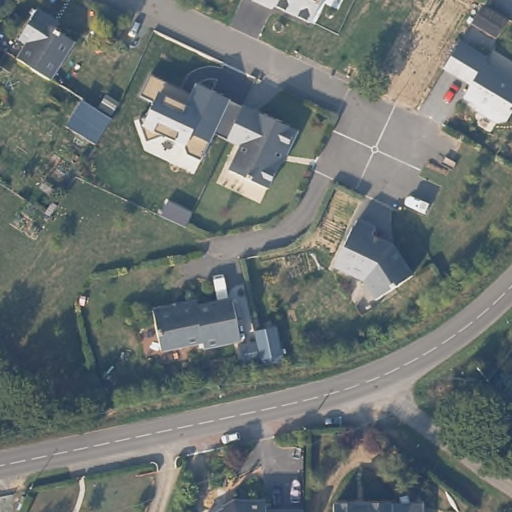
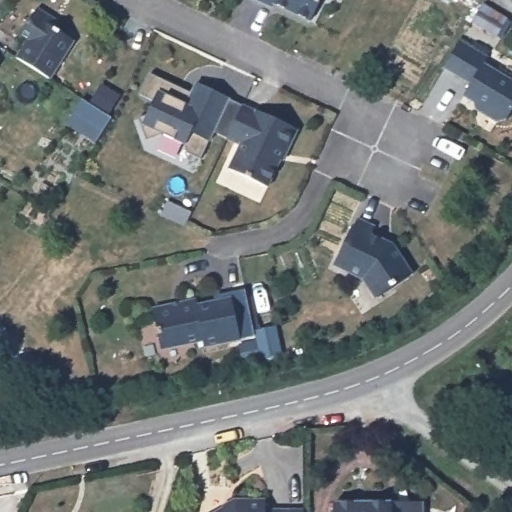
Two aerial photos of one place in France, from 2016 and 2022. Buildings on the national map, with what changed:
unchanged [(307,24),(257,0),(319,0),(307,24)]
unchanged [(512,16),(499,38),(471,22),(485,0),(488,0),(512,16)]
unchanged [(51,18),(47,24),(74,40),(50,79),(16,58),(25,43),(18,38),(36,8),(51,18)]
unchanged [(485,62),(506,75),(512,79),(512,110),(507,118),(500,120),(489,113),(487,106),(466,94),(473,81),(458,73),(445,65),(453,51),(460,39),(473,47),(488,56),(485,62)]
unchanged [(214,133),(201,160),(189,154),(185,144),(164,134),(147,140),(140,118),(148,114),(155,102),(141,95),(150,74),(190,93),(195,83),(242,105),(227,138),(214,133)]
unchanged [(82,100),(91,105),(101,86),(120,97),(109,117),(112,118),(97,143),(65,126),(82,100)]
unchanged [(255,111),(256,109),(297,128),(288,148),(286,147),(269,186),(230,169),(241,144),(227,138),(242,105),(255,111)]
unchanged [(356,228),(360,221),(377,228),(374,236),(386,241),(385,243),(398,248),(416,274),(381,299),(367,280),(338,268),(355,228),(356,228)]
unchanged [(201,294),(203,301),(234,296),(244,339),(258,337),(257,328),(278,325),(285,359),(243,368),(238,341),(201,348),(199,342),(162,351),(155,304),(201,294)]
unchanged [(294,512),(204,512),(216,504),(218,506),(223,504),(223,497),(255,495),(255,507),(277,507),(293,507),(294,512)]
unchanged [(422,512),(391,512),(391,502),(421,501),(422,512)]
unchanged [(334,512),(334,504),(391,502),(391,512),(334,512)]

